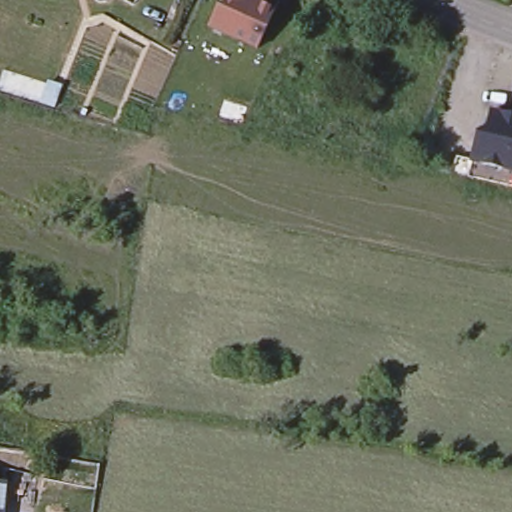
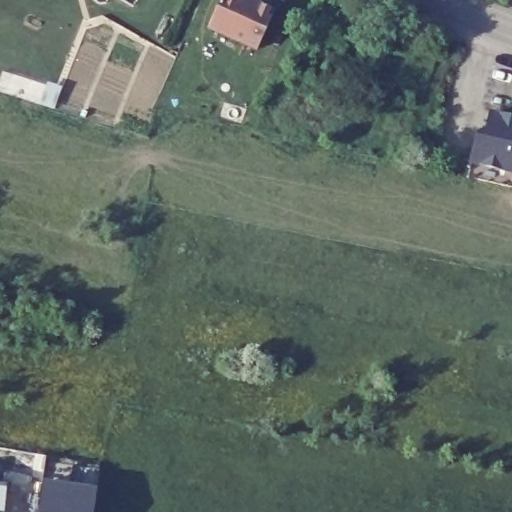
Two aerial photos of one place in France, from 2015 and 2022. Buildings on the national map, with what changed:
unchanged [(232,35),(207,24),(213,10),(218,0),(258,0),(257,1),(273,9),(257,46),(232,35)]
unchanged [(482,129),(486,112),(512,119),(512,170),(467,159),(473,134),(482,129)]
new [(43,483),(98,491),(95,512),(39,512),(43,483)]
new [(7,486),(4,512),(0,512),(0,485),(7,486)]

